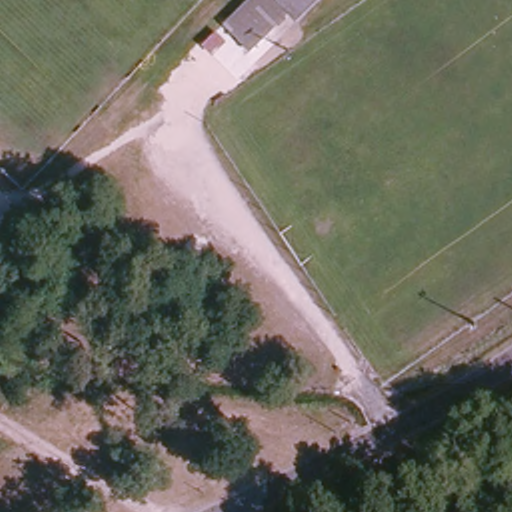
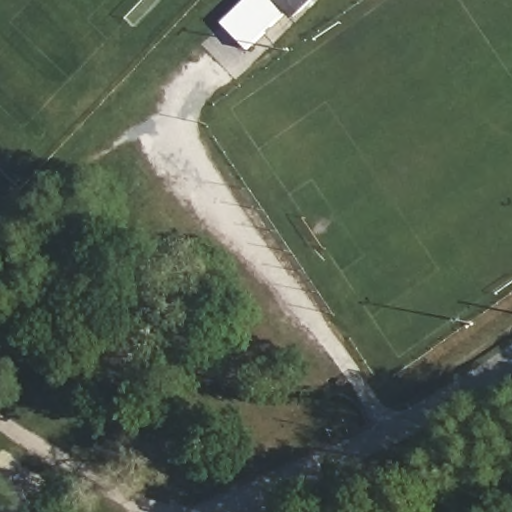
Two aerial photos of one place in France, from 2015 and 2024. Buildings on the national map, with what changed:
unchanged [(285,11),(245,49),(220,25),(245,0),(309,0),(292,17),(285,11)]

